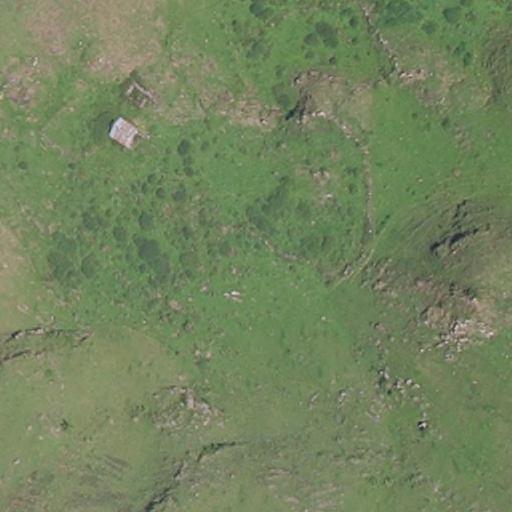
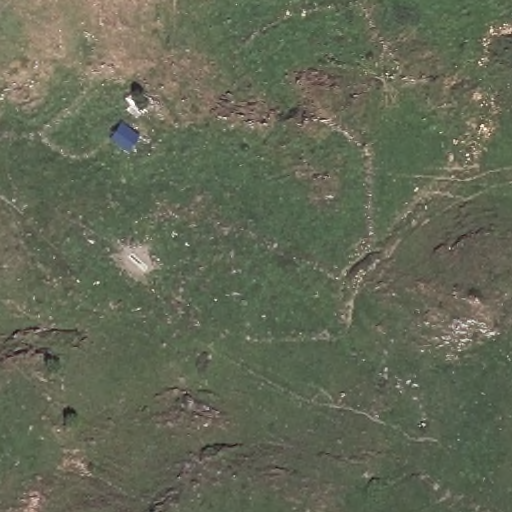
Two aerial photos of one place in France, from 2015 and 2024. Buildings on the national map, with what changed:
unchanged [(143,131),(130,150),(109,140),(121,122),(143,131)]

